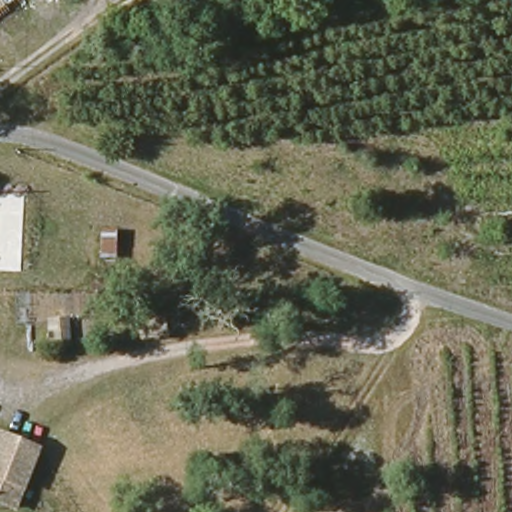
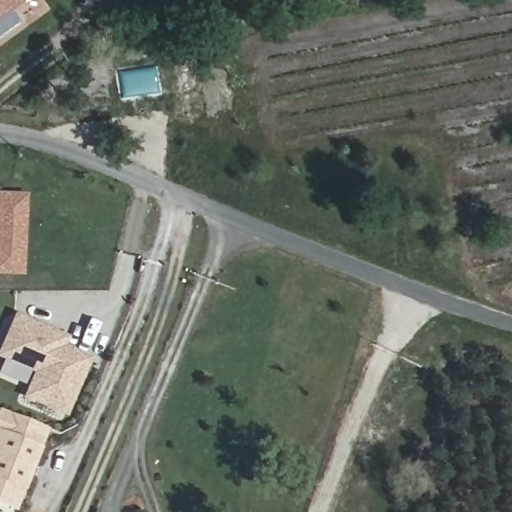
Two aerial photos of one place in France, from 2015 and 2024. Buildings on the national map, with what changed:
unchanged [(0,0),(13,0),(0,9),(0,0)]
new [(24,276),(0,273),(0,192),(28,193),(24,276)]
demolished [(129,279),(99,278),(100,233),(130,232),(129,279)]
new [(21,398),(33,374),(0,359),(0,345),(14,313),(69,336),(65,345),(93,357),(66,418),(21,398)]
demolished [(50,320),(70,319),(70,344),(53,344),(50,320)]
unchanged [(0,442),(38,455),(23,503),(0,496),(0,442)]

